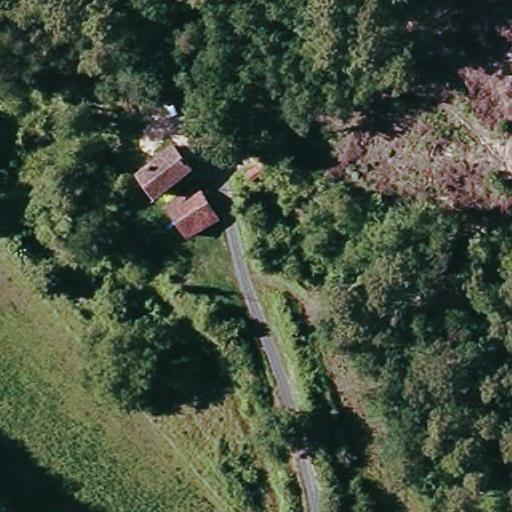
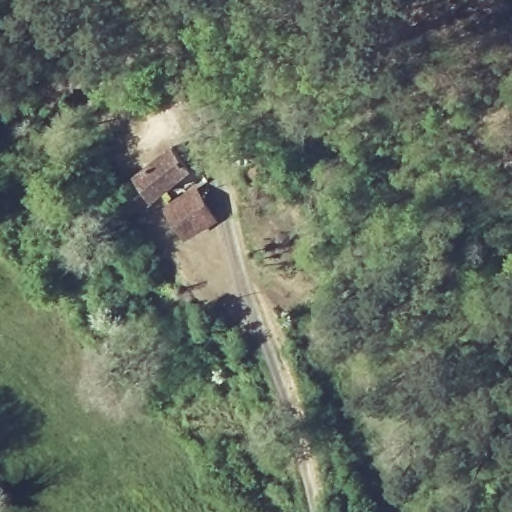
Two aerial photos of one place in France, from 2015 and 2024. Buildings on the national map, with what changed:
unchanged [(277,154),(245,179),(231,155),(241,139),(277,154)]
unchanged [(165,141),(186,165),(155,194),(134,172),(165,141)]
unchanged [(126,219),(107,196),(134,172),(155,194),(126,219)]
unchanged [(186,239),(167,209),(200,189),(219,220),(186,239)]
unchanged [(221,295),(236,314),(215,334),(198,314),(205,309),(221,295)]

